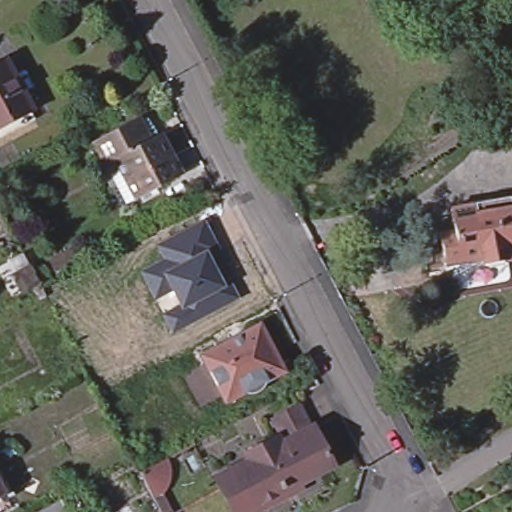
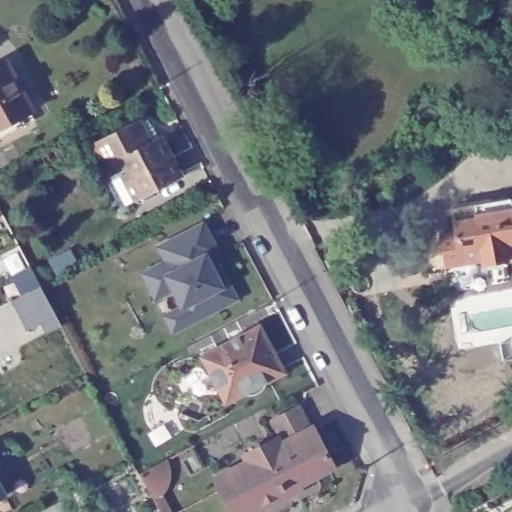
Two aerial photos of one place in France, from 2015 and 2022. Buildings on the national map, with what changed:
unchanged [(29,108),(0,123),(0,64),(4,62),(29,108)]
unchanged [(108,158),(96,136),(139,113),(145,125),(151,135),(162,130),(183,170),(139,194),(123,202),(101,161),(108,158)]
unchanged [(512,191),(512,252),(444,264),(437,227),(453,224),(449,203),(512,191)]
unchanged [(141,272),(163,261),(156,246),(206,222),(239,298),(172,333),(163,315),(178,307),(171,291),(154,300),(141,272)]
new [(12,299),(21,295),(10,273),(30,264),(41,285),(61,326),(45,333),(40,324),(27,329),(12,299)]
demolished [(38,298),(32,288),(20,294),(11,275),(30,266),(32,271),(42,266),(50,282),(41,287),(45,295),(38,298)]
unchanged [(281,371),(265,379),(262,386),(257,390),(253,392),(247,393),(242,391),(223,401),(200,355),(257,324),(281,371)]
unchanged [(321,448),(323,447),(330,462),(283,487),(285,491),(245,512),(231,512),(225,502),(226,502),(215,479),(281,444),(268,420),(295,406),(308,429),(311,428),(321,448)]
unchanged [(166,474),(162,487),(151,497),(138,472),(162,459),(166,474)]
unchanged [(0,481),(6,494),(13,507),(2,512),(0,512),(0,481)]
unchanged [(58,504),(63,512),(42,512),(58,504)]

